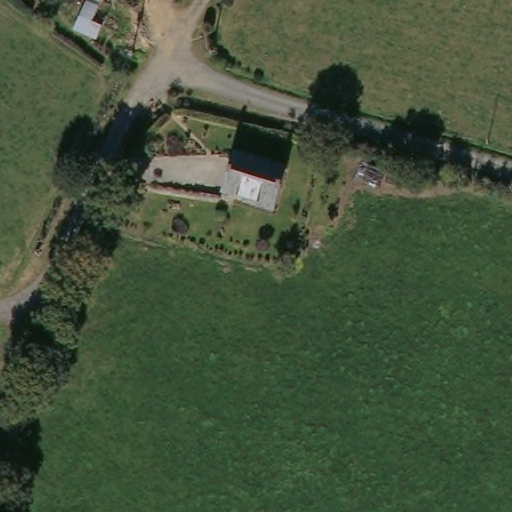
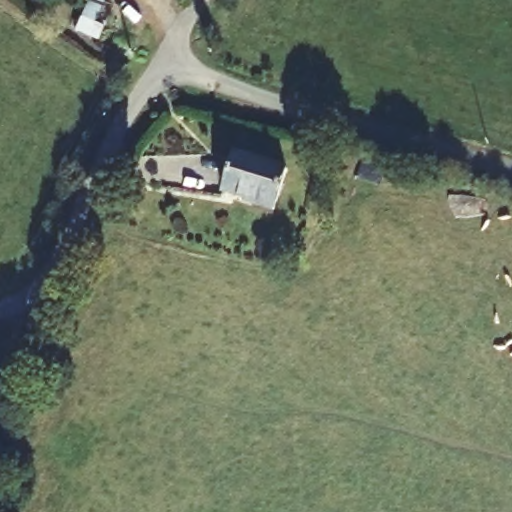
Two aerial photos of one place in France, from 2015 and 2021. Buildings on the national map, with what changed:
unchanged [(106,27),(98,40),(77,30),(91,0),(105,0),(96,23),(106,27)]
unchanged [(235,152),(288,168),(275,210),(251,203),(252,200),(223,191),(235,152)]

